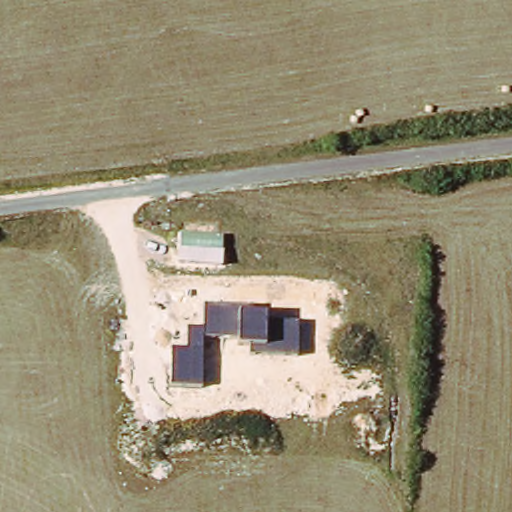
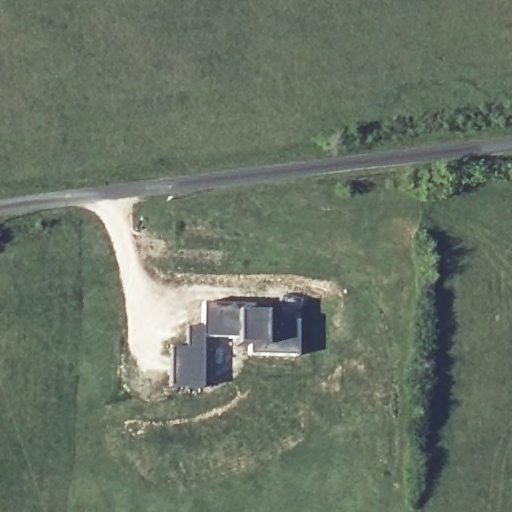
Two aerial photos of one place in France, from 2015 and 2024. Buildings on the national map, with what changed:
unchanged [(171,348),(186,348),(186,327),(202,327),(204,305),(255,306),(255,309),(268,310),(268,318),(299,320),(298,355),(250,353),(250,346),(237,346),(238,337),(203,336),(201,386),(170,386),(171,348)]

